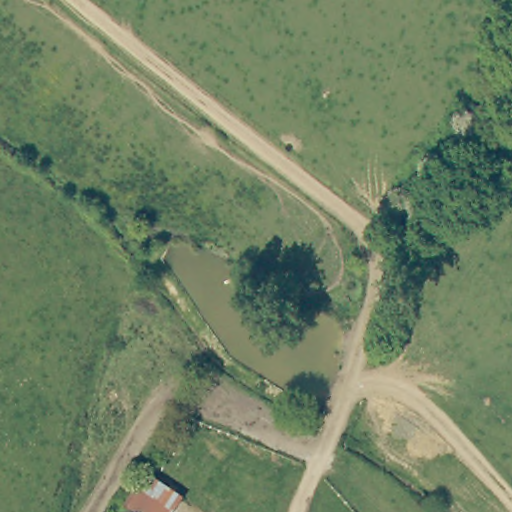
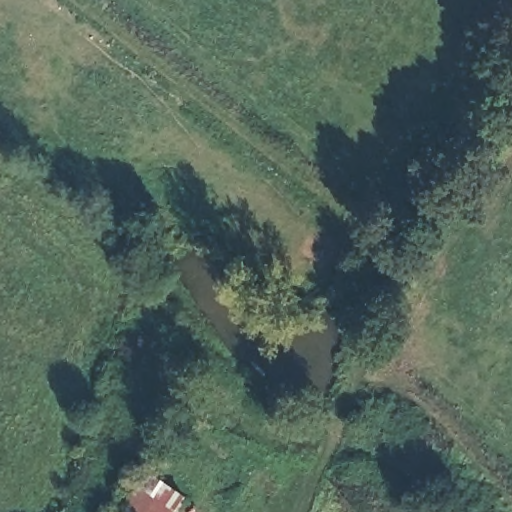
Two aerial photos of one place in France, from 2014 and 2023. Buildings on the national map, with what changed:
unchanged [(185,496),(175,512),(122,512),(147,472),(185,496)]

